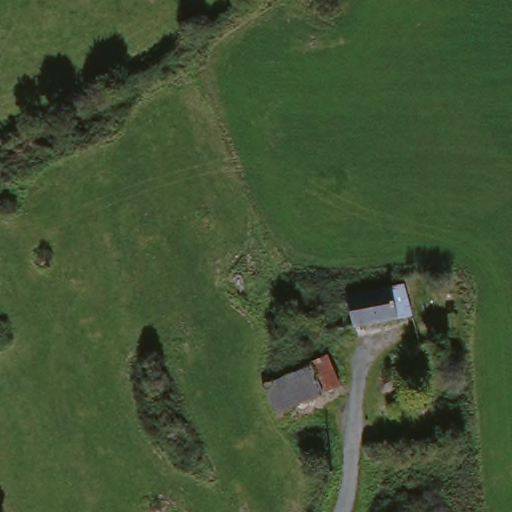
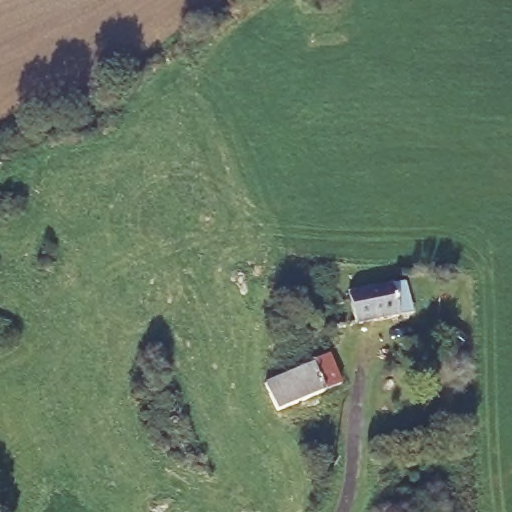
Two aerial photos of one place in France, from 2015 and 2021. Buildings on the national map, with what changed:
unchanged [(352,298),(349,291),(402,281),(408,282),(414,308),(359,323),(352,298)]
unchanged [(317,327),(323,327),(339,391),(319,398),(310,368),(305,369),(294,335),(317,327)]
unchanged [(305,369),(310,368),(319,398),(284,408),(265,413),(253,383),(275,378),(305,369)]

